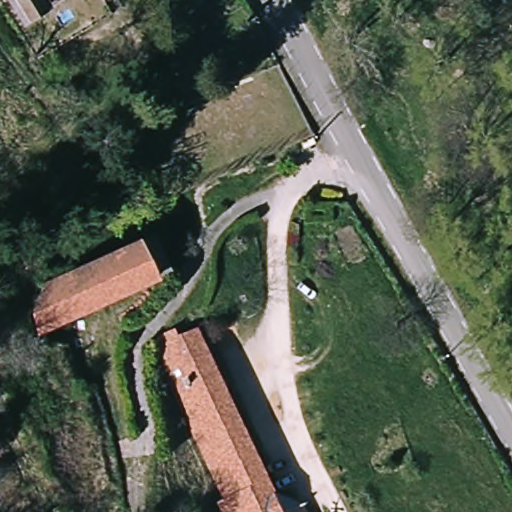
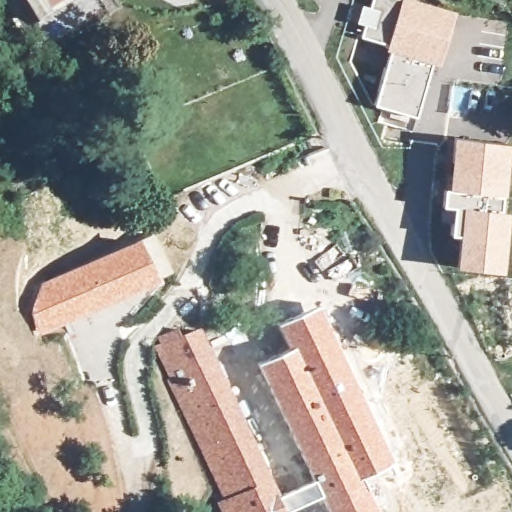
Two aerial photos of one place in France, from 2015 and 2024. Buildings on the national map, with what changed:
unchanged [(24,19),(11,0),(54,0),(24,19)]
new [(388,51),(385,50),(386,46),(360,37),(363,26),(356,23),(362,6),(369,7),(371,0),(412,0),(454,12),(438,66),(430,64),(415,117),(373,106),(388,51)]
new [(449,236),(450,223),(440,222),(442,207),(443,189),(447,189),(452,138),(507,144),(502,196),(500,196),(499,211),(507,212),(500,272),(455,267),(458,236),(449,236)]
unchanged [(152,238),(169,274),(65,322),(39,335),(34,323),(32,317),(42,290),(116,255),(122,252),(152,238)]
new [(278,323),(319,303),(392,460),(362,475),(380,512),(328,512),(320,496),(285,512),(277,495),(312,478),(258,363),(289,347),(278,323)]
unchanged [(231,508),(227,497),(229,496),(158,347),(197,328),(285,512),(225,512),(225,511),(231,508)]

